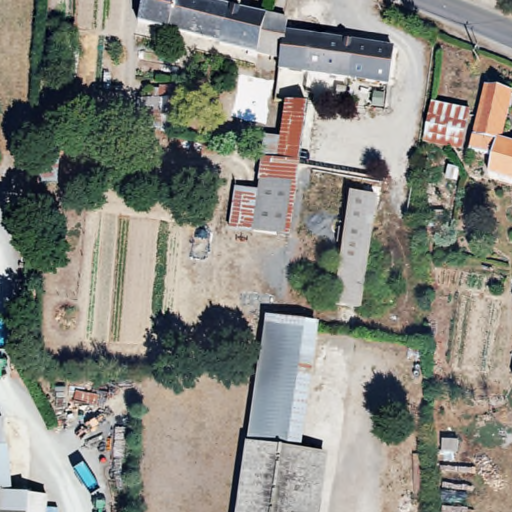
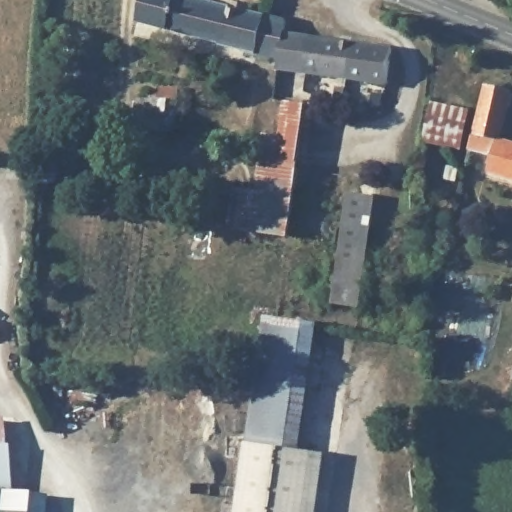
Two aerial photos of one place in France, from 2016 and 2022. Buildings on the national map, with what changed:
unchanged [(291,19),(289,32),(284,56),(272,54),(144,22),(147,0),(212,0),(291,19)]
unchanged [(392,51),(385,84),(282,66),(284,56),(289,32),(392,51)]
unchanged [(434,79),(473,85),(461,149),(421,143),(434,79)]
unchanged [(490,172),(493,159),(469,153),(488,85),(510,92),(499,137),(512,141),(512,180),(489,175),(490,172)]
unchanged [(163,94),(163,112),(159,112),(160,120),(159,122),(158,125),(157,127),(156,127),(155,128),(152,129),(149,129),(146,127),(143,127),(142,124),(141,121),(141,117),(144,110),(141,110),(142,92),(163,94)]
unchanged [(236,140),(260,142),(273,142),(280,105),(305,108),(287,240),(251,235),(228,232),(238,158),(238,157),(236,140)]
unchanged [(373,204),(356,315),(330,312),(347,201),(373,204)]
unchanged [(317,323),(299,450),(326,453),(317,512),(235,512),(264,316),(317,323)]
unchanged [(12,493),(45,497),(47,498),(46,512),(0,512),(0,421),(1,421),(12,493)]

